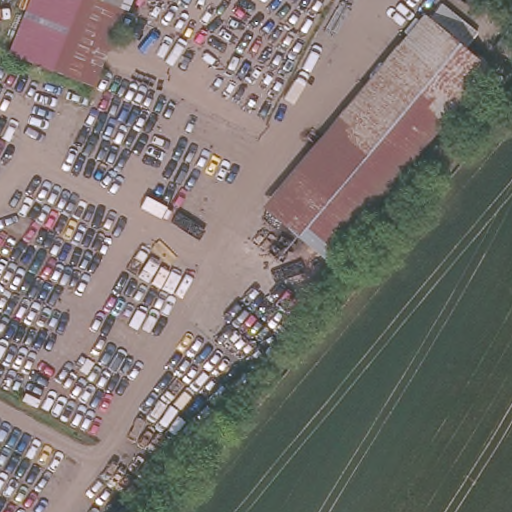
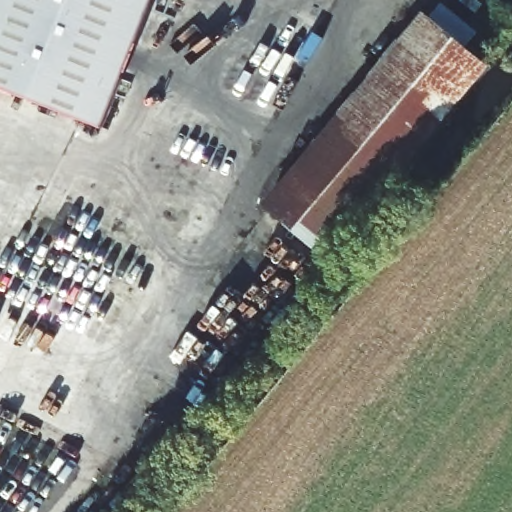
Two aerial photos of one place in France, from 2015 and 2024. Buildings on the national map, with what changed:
new [(0,93),(0,0),(149,0),(97,130),(0,93)]
demolished [(9,51),(30,0),(128,0),(94,86),(9,51)]
unchanged [(472,38),(460,52),(476,66),(316,259),(264,215),(424,22),(436,8),(472,38)]
unchanged [(256,209),(417,17),(424,22),(264,215),(256,209)]
demolished [(512,31),(512,65),(510,68),(478,43),(497,19),(512,31)]
unchanged [(484,73),(324,265),(316,259),(476,66),(484,73)]

